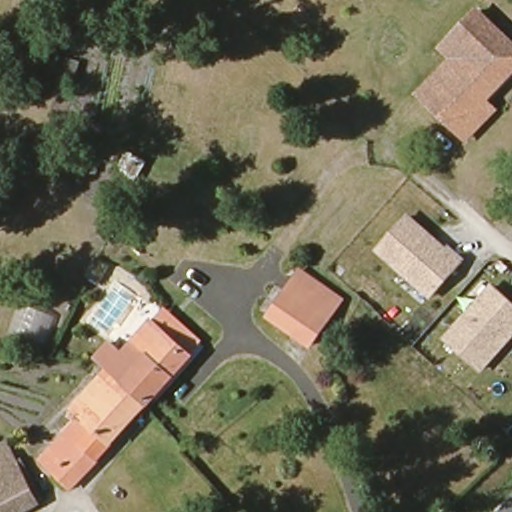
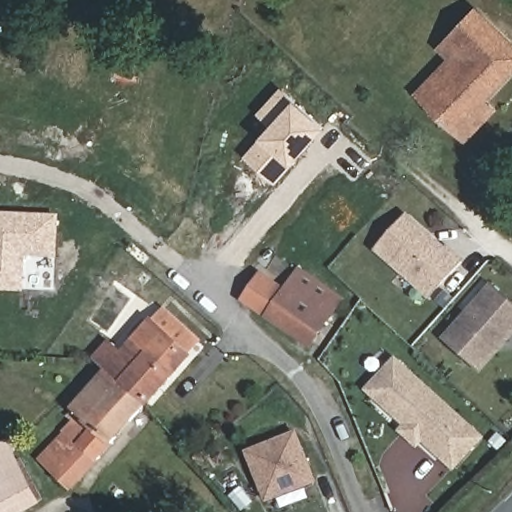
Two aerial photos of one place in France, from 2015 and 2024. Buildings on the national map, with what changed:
unchanged [(454,126),(418,91),(451,57),(440,46),(452,35),(476,10),(512,44),(512,67),(481,98),(492,109),(465,137),(454,126)]
new [(257,114),(282,86),(327,127),(275,185),(244,156),(271,126),(257,114)]
new [(27,258),(25,292),(0,291),(0,212),(60,215),(59,259),(27,258)]
unchanged [(443,252),(446,249),(459,261),(426,296),(375,249),(405,217),(443,252)]
new [(261,271),(288,289),(285,294),(269,319),(242,301),(261,271)]
unchanged [(288,289),(298,273),(342,302),(329,322),(285,294),(288,289)]
unchanged [(512,301),(512,331),(491,354),(480,366),(447,336),(451,332),(495,285),(512,301)]
unchanged [(329,322),(313,348),(269,319),(285,294),(329,322)]
unchanged [(111,375),(96,362),(112,345),(125,356),(153,326),(165,313),(202,347),(190,360),(147,408),(111,375)]
new [(424,444),(420,449),(399,431),(404,426),(365,391),(396,355),(486,437),(455,471),(424,444)]
unchanged [(72,489),(41,460),(82,417),(72,408),(105,374),(111,375),(147,408),(72,489)]
new [(266,503),(246,451),(298,431),(318,484),(266,503)]
unchanged [(7,442),(41,502),(24,512),(0,512),(0,446),(7,442)]

